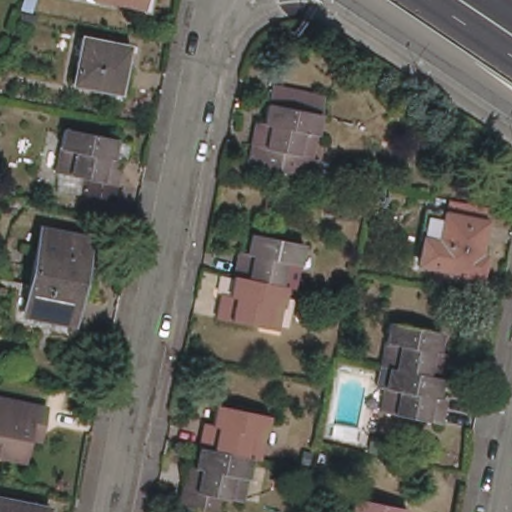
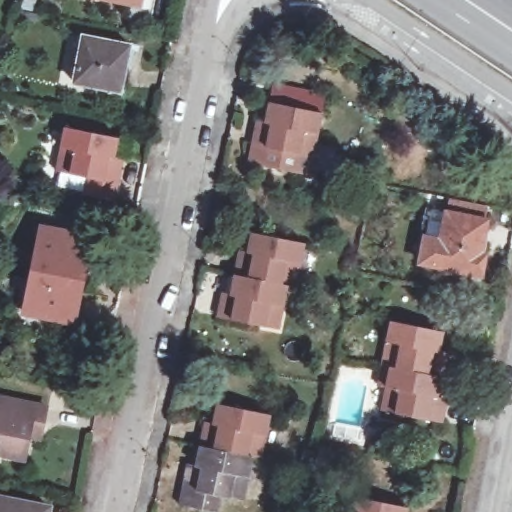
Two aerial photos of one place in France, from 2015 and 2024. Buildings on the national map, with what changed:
unchanged [(24,10),(28,0),(35,1),(32,11),(24,10)]
unchanged [(139,3),(126,0),(140,0),(139,3)]
unchanged [(39,14),(38,24),(23,21),(25,12),(39,14)]
unchanged [(130,45),(121,92),(74,82),(83,35),(130,45)]
unchanged [(274,84),(326,94),(322,112),(269,102),(274,84)]
unchanged [(316,177),(291,172),(249,164),(253,145),(258,121),(266,122),(269,102),(322,112),(314,156),(320,158),(316,177)]
unchanged [(103,180),(57,170),(65,127),(118,137),(114,158),(123,160),(118,183),(103,180)]
unchanged [(6,196),(0,195),(0,182),(14,185),(11,197),(6,196)]
unchanged [(328,212),(331,199),(333,186),(346,189),(344,201),(339,201),(336,214),(328,212)]
unchanged [(487,220),(477,273),(421,262),(432,210),(487,220)]
unchanged [(25,312),(43,227),(91,236),(74,322),(25,312)]
unchanged [(240,251),(248,252),(253,233),(306,244),(296,286),(288,285),(235,275),(240,251)]
unchanged [(233,319),(218,316),(223,293),(231,295),(235,275),(288,285),(279,329),(233,319)]
unchanged [(424,369),(386,361),(378,360),(386,315),(439,325),(435,345),(443,347),(438,372),(424,369)]
unchanged [(434,391),(443,393),(438,417),(377,405),(381,381),(374,380),(378,360),(386,361),(424,369),(438,372),(434,391)]
unchanged [(30,435),(25,457),(0,453),(0,396),(48,406),(45,423),(43,437),(30,435)]
unchanged [(211,421),(219,423),(223,403),(276,414),(266,458),(258,456),(206,446),(211,421)]
unchanged [(188,487),(193,464),(201,466),(202,466),(206,446),(258,456),(249,500),(226,495),(223,512),(220,512),(185,505),(188,487)]
unchanged [(407,512),(352,512),(355,496),(408,507),(407,512)]
unchanged [(49,507),(48,512),(0,512),(0,497),(49,507)]

